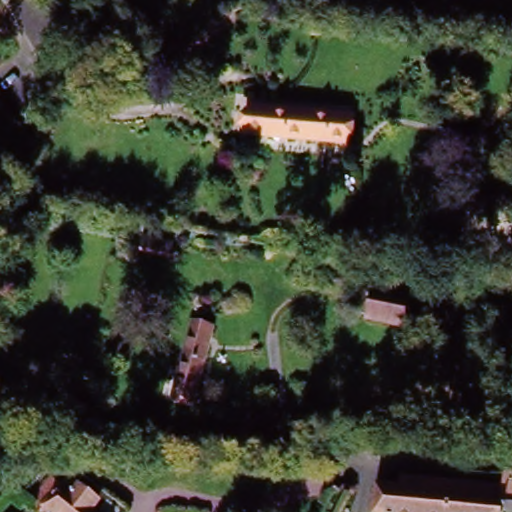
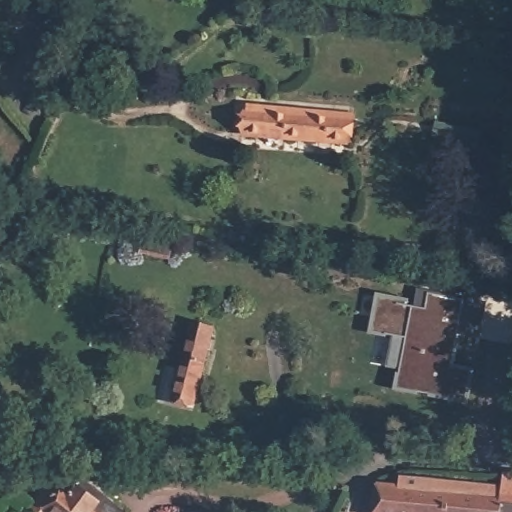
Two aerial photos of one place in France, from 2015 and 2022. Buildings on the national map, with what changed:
unchanged [(345,125),(341,125),(338,142),(240,133),(242,105),(347,116),(345,125)]
new [(396,329),(402,300),(410,299),(410,304),(414,305),(417,286),(487,301),(470,405),(394,390),(399,370),(387,368),(392,337),(387,335),(386,338),(369,336),(371,325),(396,329)]
unchanged [(396,329),(362,323),(367,293),(402,300),(396,329)]
unchanged [(185,408),(165,402),(185,330),(203,334),(185,408)]
unchanged [(507,498),(507,481),(512,481),(512,499),(507,498)]
unchanged [(55,485),(65,492),(73,484),(82,490),(75,501),(88,512),(34,512),(33,511),(55,485)]
unchanged [(121,512),(88,512),(75,501),(82,490),(85,485),(121,512)]
unchanged [(430,488),(484,494),(482,504),(505,506),(504,512),(378,512),(380,494),(429,499),(430,488)]

